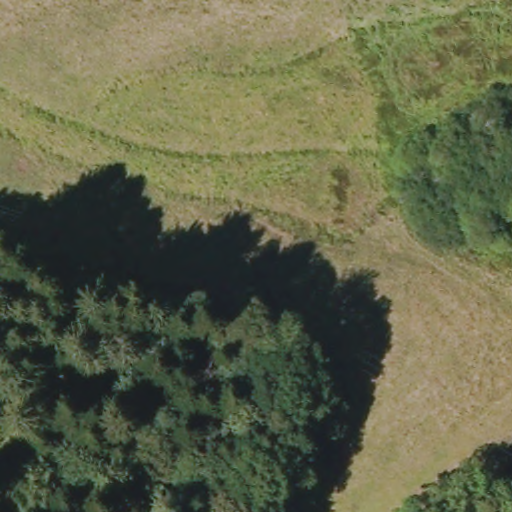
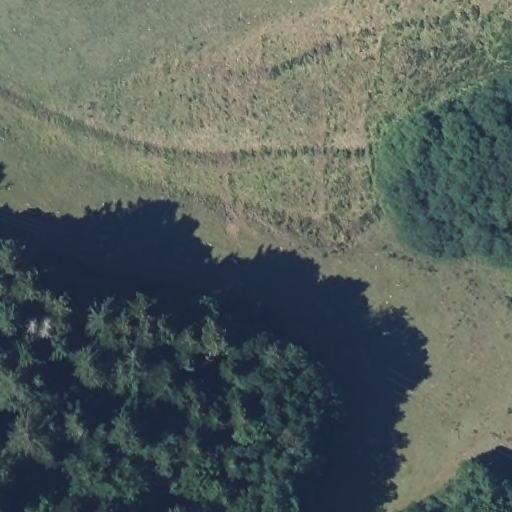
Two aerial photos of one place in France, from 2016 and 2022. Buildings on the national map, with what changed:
[]

